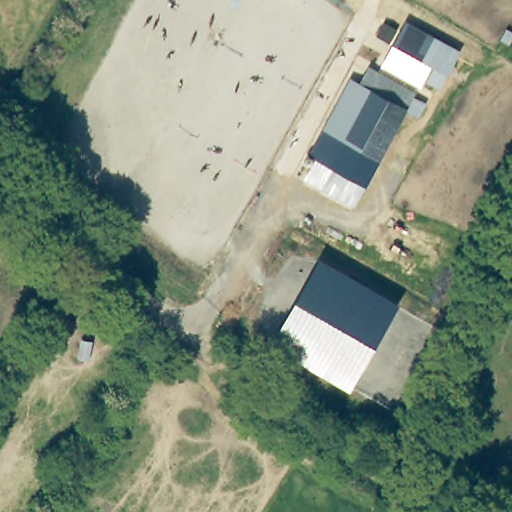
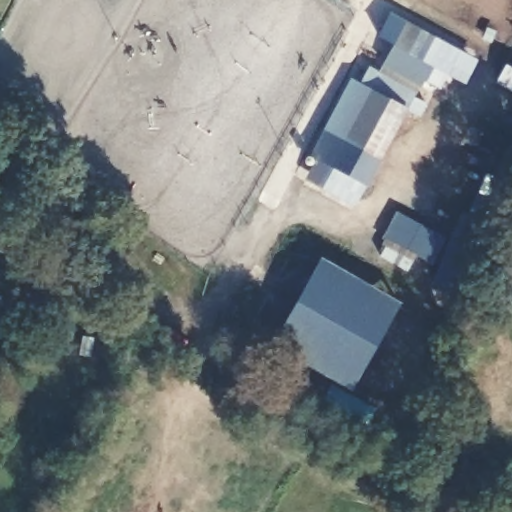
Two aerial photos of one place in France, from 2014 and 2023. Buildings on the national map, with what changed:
unchanged [(439,91),(423,83),(418,89),(379,68),(406,21),(460,49),(439,91)]
new [(512,90),(494,81),(505,63),(512,67),(512,90)]
unchanged [(303,182),(315,159),(309,156),(351,77),(360,83),(370,66),(413,93),(411,95),(426,104),(420,116),(406,108),(354,207),(303,182)]
new [(439,234),(426,258),(415,252),(406,270),(378,255),(384,245),(380,243),(398,212),(439,234)]
unchanged [(397,303),(346,390),(272,347),(318,257),(397,303)]

